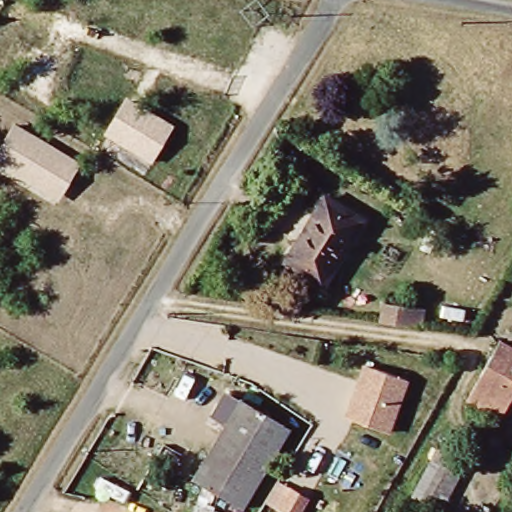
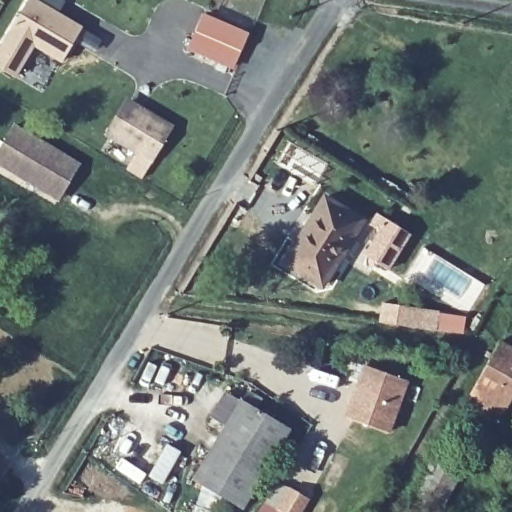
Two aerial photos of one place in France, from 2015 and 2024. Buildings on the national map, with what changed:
new [(35,46),(15,79),(0,69),(0,45),(27,0),(38,0),(83,27),(63,64),(35,46)]
new [(233,67),(188,50),(203,13),(250,33),(233,67)]
unchanged [(177,124),(152,162),(106,134),(128,96),(177,124)]
unchanged [(59,203),(0,169),(0,147),(15,122),(83,160),(59,203)]
unchanged [(324,282),(283,259),(319,199),(360,222),(324,282)]
new [(386,268),(363,255),(384,219),(407,232),(386,268)]
unchanged [(385,305),(423,310),(420,331),(382,327),(385,305)]
unchanged [(512,352),(512,393),(498,418),(465,399),(497,343),(512,352)]
unchanged [(410,381),(392,434),(344,417),(364,364),(410,381)]
unchanged [(194,480),(242,401),(285,426),(291,430),(243,509),(240,507),(194,480)]
unchanged [(419,512),(400,512),(440,446),(469,462),(439,512),(424,512),(420,510),(419,512)]
unchanged [(302,512),(279,512),(265,502),(278,481),(310,500),(302,512)]

